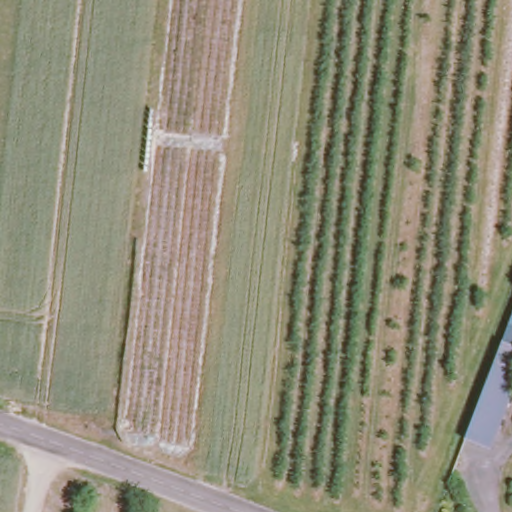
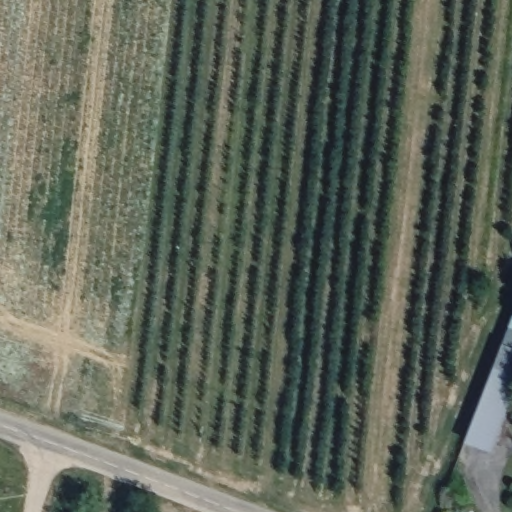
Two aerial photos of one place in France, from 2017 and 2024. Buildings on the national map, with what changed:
unchanged [(512,409),(499,443),(474,433),(510,340),(512,334),(512,409)]

